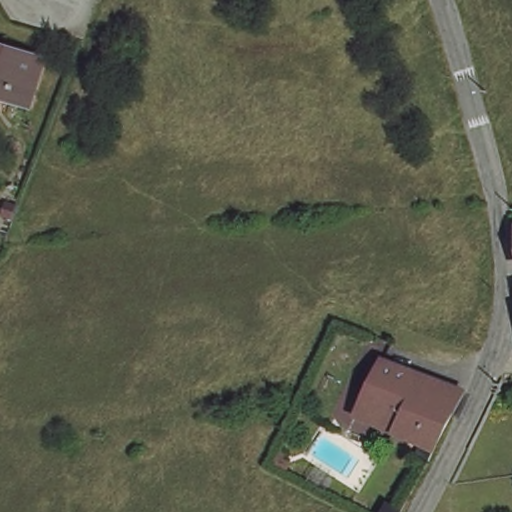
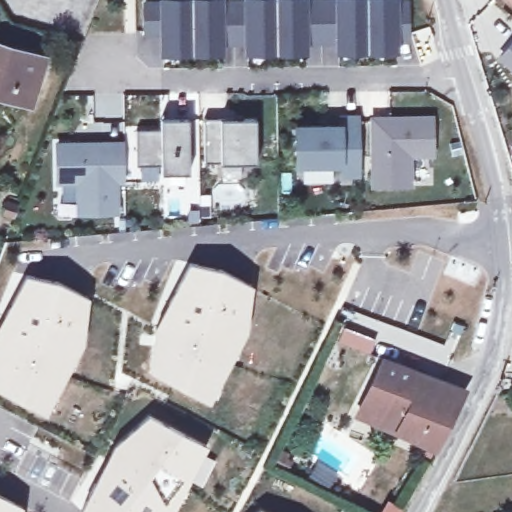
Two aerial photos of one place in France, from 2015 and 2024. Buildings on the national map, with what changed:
new [(156,1),(156,0),(214,0),(213,2),(240,1),(240,0),(389,0),(389,1),(403,1),(403,33),(390,32),(390,45),(332,46),(332,34),(298,34),(298,47),(241,47),(241,35),(215,35),(215,48),(157,48),(157,28),(139,29),(139,1),(156,1)]
new [(512,6),(505,0),(512,0),(512,6)]
unchanged [(30,108),(0,99),(0,49),(43,62),(30,108)]
new [(333,124),(332,115),(352,115),(354,173),(335,174),(335,163),(290,164),(290,126),(333,124)]
new [(427,116),(427,153),(404,154),(404,184),(367,185),(367,116),(427,116)]
new [(183,171),(156,172),(155,164),(131,164),(130,128),(155,128),(155,117),(182,117),(183,171)]
new [(250,161),(236,161),(236,160),(199,161),(198,118),(250,117),(250,161)]
new [(117,141),(119,179),(111,179),(111,210),(73,210),(73,180),(52,180),(51,142),(117,141)]
new [(155,327),(189,264),(221,268),(252,285),(246,333),(209,405),(151,372),(155,327)]
new [(0,391),(0,323),(26,276),(57,281),(88,296),(83,344),(46,417),(0,391)]
unchanged [(433,445),(355,413),(381,365),(462,394),(433,445)]
new [(173,512),(80,512),(114,446),(149,415),(206,445),(173,512)]
unchanged [(295,459),(288,472),(270,463),(276,450),(295,459)]
new [(21,507),(21,512),(0,512),(0,495),(21,507)]
new [(267,512),(257,512),(260,509),(267,512)]

